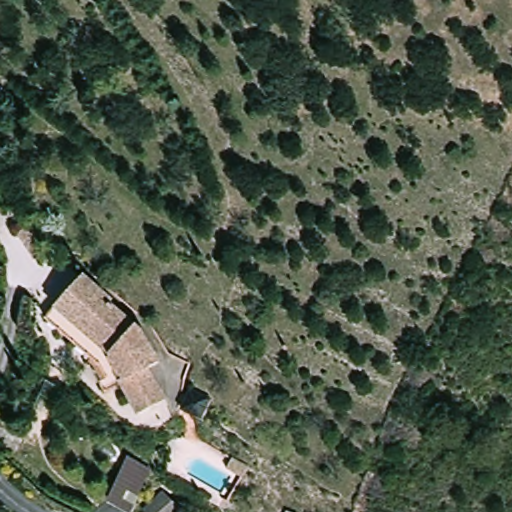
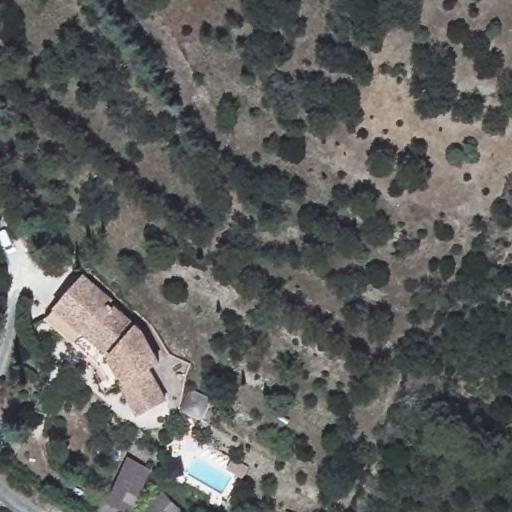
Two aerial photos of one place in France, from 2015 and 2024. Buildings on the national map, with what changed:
unchanged [(46,252),(37,247),(24,242),(32,223),(44,229),(55,234),(46,252)]
unchanged [(105,277),(77,311),(110,342),(102,355),(52,317),(90,264),(105,277)]
unchanged [(110,281),(105,288),(128,307),(155,340),(148,347),(169,376),(142,396),(118,368),(126,361),(110,342),(77,311),(105,277),(110,281)]
unchanged [(150,469),(132,512),(126,512),(107,502),(128,456),(150,469)]
unchanged [(186,509),(182,512),(151,512),(146,506),(167,486),(186,509)]

